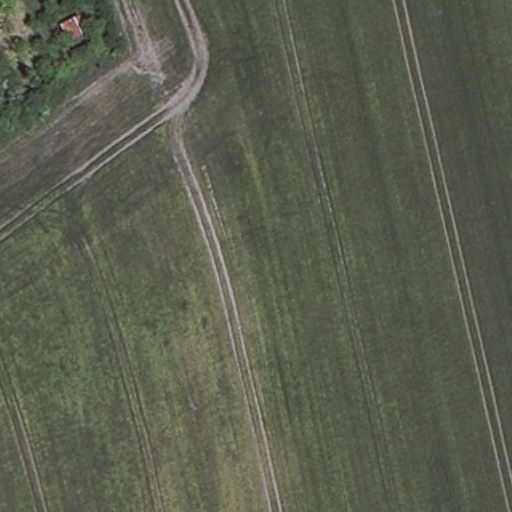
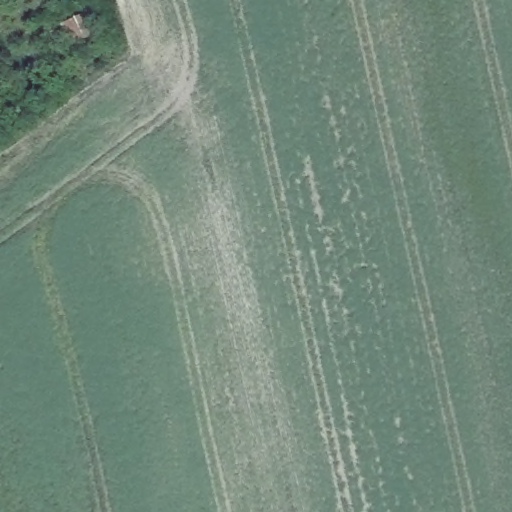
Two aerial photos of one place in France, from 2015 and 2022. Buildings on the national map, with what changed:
unchanged [(55,27),(79,16),(87,40),(72,46),(69,37),(64,40),(55,27)]

